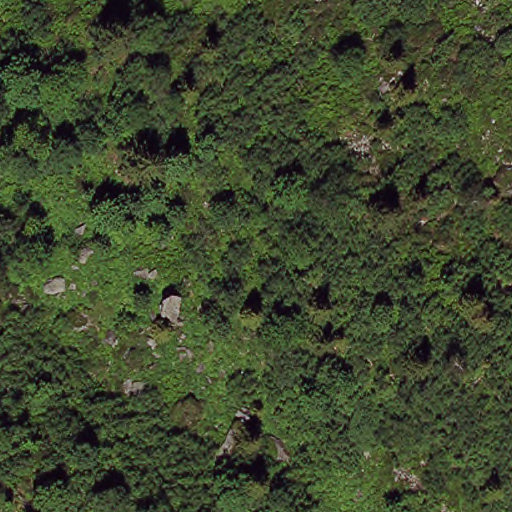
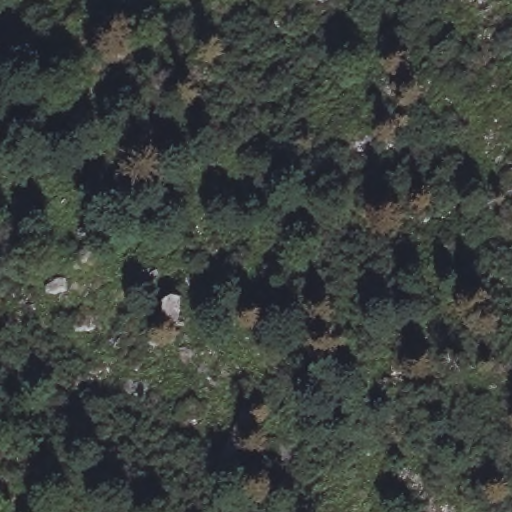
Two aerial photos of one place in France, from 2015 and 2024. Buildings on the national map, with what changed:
unchanged [(183,325),(158,326),(158,298),(181,297),(183,325)]

